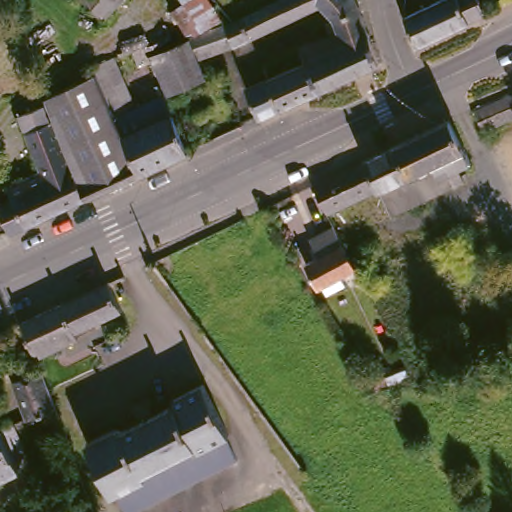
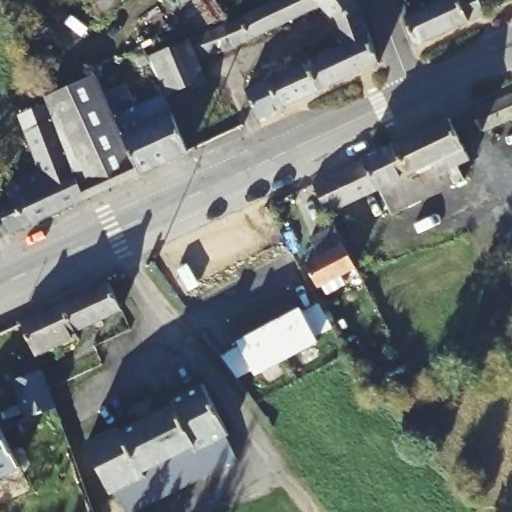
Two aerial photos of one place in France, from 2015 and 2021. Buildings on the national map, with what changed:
unchanged [(106,21),(70,0),(120,0),(106,21)]
unchanged [(174,12),(203,0),(224,23),(223,23),(222,24),(186,39),(174,12)]
unchanged [(314,104),(300,76),(296,68),(291,70),(288,64),(334,42),(331,31),(327,18),(326,18),(321,13),(233,49),(222,24),(223,23),(224,23),(281,0),(341,0),(351,9),(354,22),(371,80),(314,104)]
unchanged [(480,16),(412,49),(401,21),(446,0),(472,0),(480,16)]
unchanged [(222,24),(233,49),(196,65),(186,39),(222,24)]
unchanged [(196,65),(203,83),(160,101),(143,56),(143,55),(186,39),(196,65)]
unchanged [(88,85),(86,77),(92,75),(113,67),(131,118),(113,127),(138,182),(84,207),(71,179),(42,193),(38,183),(19,143),(11,126),(44,112),(41,105),(88,85)]
unchanged [(241,101),(264,91),(300,76),(314,104),(278,120),(256,130),(241,101)]
unchanged [(465,116),(512,96),(512,122),(474,139),(465,116)]
unchanged [(131,118),(162,105),(183,162),(138,182),(113,127),(131,118)]
unchanged [(356,169),(442,129),(463,170),(463,171),(450,177),(456,189),(398,215),(384,189),(369,196),(356,169)]
unchanged [(369,196),(338,211),(318,220),(304,194),(356,169),(369,196)]
unchanged [(7,197),(38,183),(42,193),(71,179),(84,207),(6,243),(0,231),(0,211),(10,206),(7,197)]
unchanged [(338,211),(371,278),(354,287),(348,276),(324,232),(318,220),(338,211)]
unchanged [(348,276),(331,284),(337,295),(319,304),(314,293),(309,296),(295,271),(311,262),(301,244),(324,232),(348,276)]
unchanged [(116,288),(128,313),(115,318),(116,321),(71,343),(59,315),(104,295),(116,288)]
new [(239,346),(237,342),(301,307),(304,311),(318,305),(331,330),(316,337),(319,342),(256,377),(252,370),(238,378),(221,357),(239,346)]
unchanged [(71,343),(73,346),(30,367),(15,335),(59,315),(71,343)]
unchanged [(53,411),(28,423),(12,390),(37,378),(53,411)]
unchanged [(154,508),(145,512),(118,512),(113,501),(108,503),(81,448),(114,434),(114,436),(166,411),(165,408),(199,392),(228,443),(224,445),(236,469),(204,484),(201,479),(186,486),(168,495),(151,503),(154,508)]
unchanged [(11,473),(0,479),(0,450),(11,473)]

